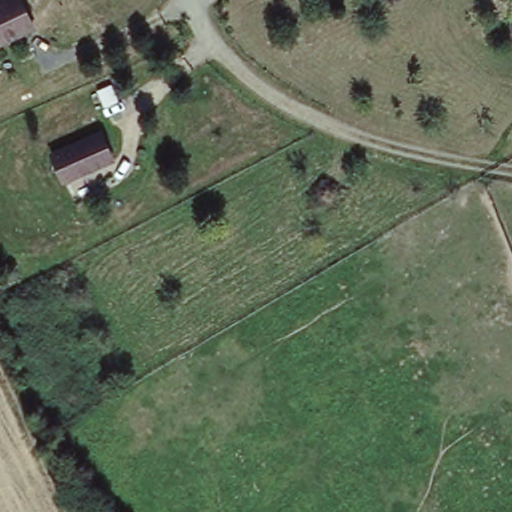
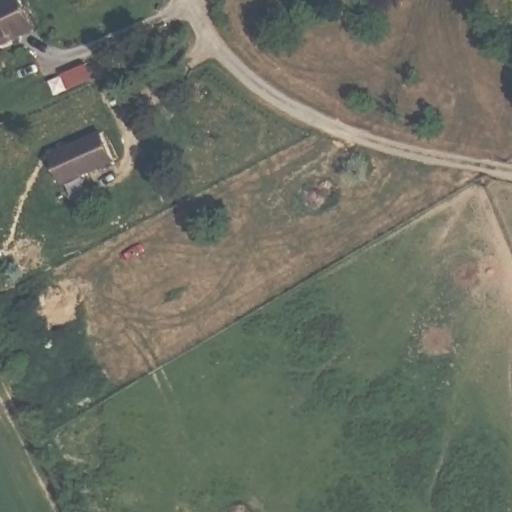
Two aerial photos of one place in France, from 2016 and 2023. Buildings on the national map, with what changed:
unchanged [(25,4),(34,25),(12,35),(0,41),(0,0),(23,0),(25,4)]
unchanged [(98,130),(112,158),(61,181),(47,152),(98,130)]

